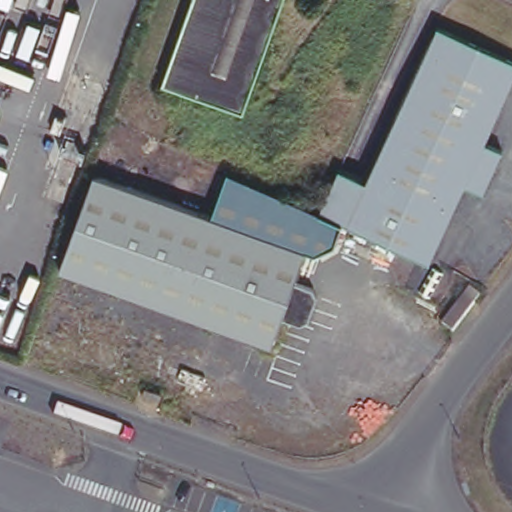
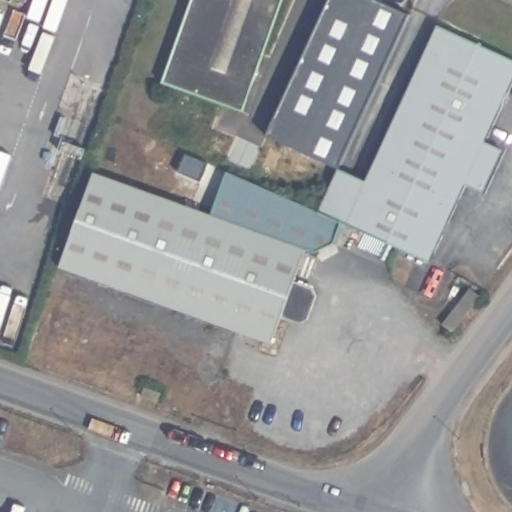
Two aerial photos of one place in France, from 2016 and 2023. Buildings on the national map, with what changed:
unchanged [(162,82),(191,0),(282,0),(244,107),(162,82)]
new [(338,164),(268,134),(330,0),(374,0),(408,15),(338,164)]
unchanged [(433,24),(512,58),(512,78),(484,139),(502,146),(482,190),(464,182),(430,261),(342,224),(363,178),(433,24)]
unchanged [(325,194),(317,212),(342,224),(334,245),(313,246),(304,242),(209,209),(227,159),(325,194)]
unchanged [(209,209),(304,242),(292,277),(312,286),(316,293),(307,317),(299,319),(279,312),(269,339),(58,262),(91,167),(209,209)]
unchanged [(363,178),(342,224),(317,212),(325,194),(337,168),(363,178)]
new [(470,286),(481,295),(453,330),(442,321),(470,286)]
unchanged [(152,394),(148,404),(131,398),(134,388),(152,394)]

